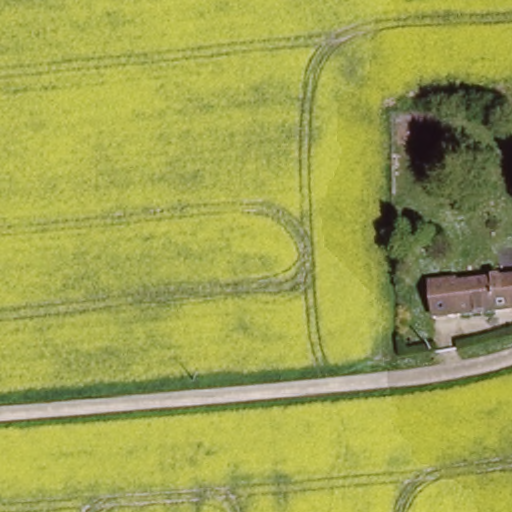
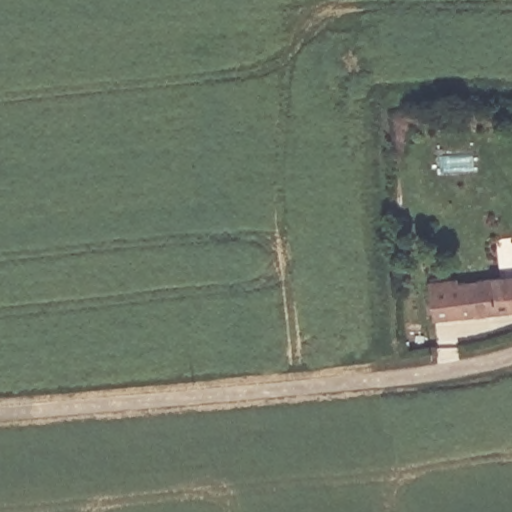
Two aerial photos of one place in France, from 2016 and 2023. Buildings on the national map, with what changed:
unchanged [(512,276),(512,311),(434,317),(433,276),(459,275),(460,280),(512,276)]

